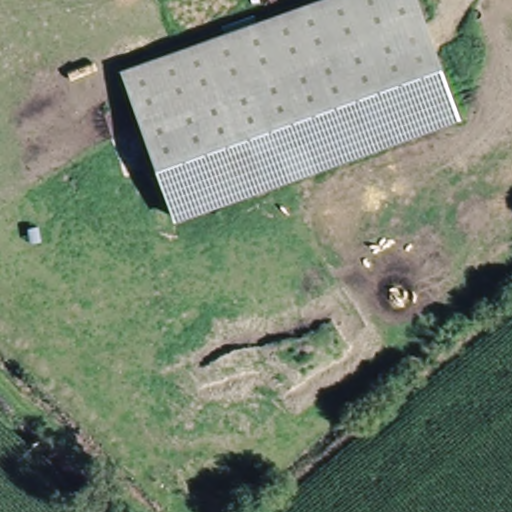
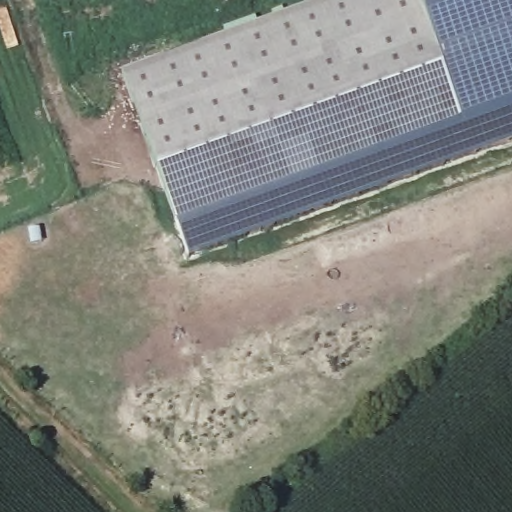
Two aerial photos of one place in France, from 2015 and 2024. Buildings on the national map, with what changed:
unchanged [(180,219),(129,73),(327,0),(420,0),(462,116),(180,219)]
new [(420,0),(512,0),(512,99),(462,116),(420,0)]
new [(192,257),(180,219),(462,116),(512,99),(512,143),(192,257)]

